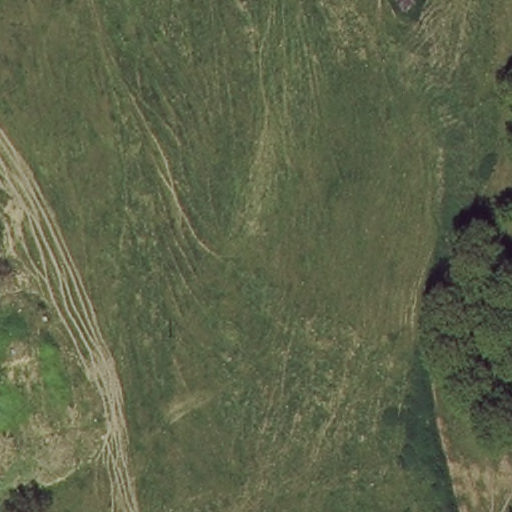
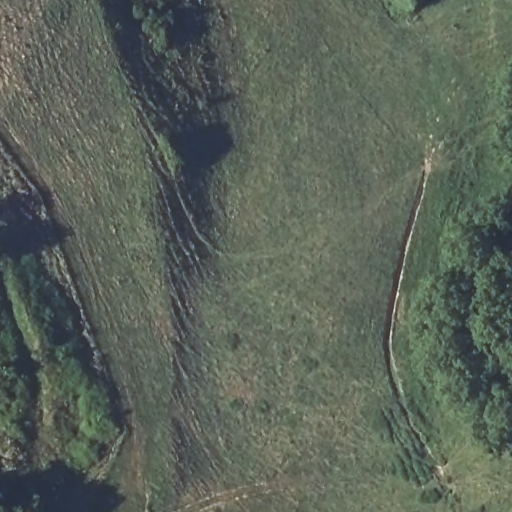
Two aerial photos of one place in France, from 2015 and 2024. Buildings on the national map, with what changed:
[]

